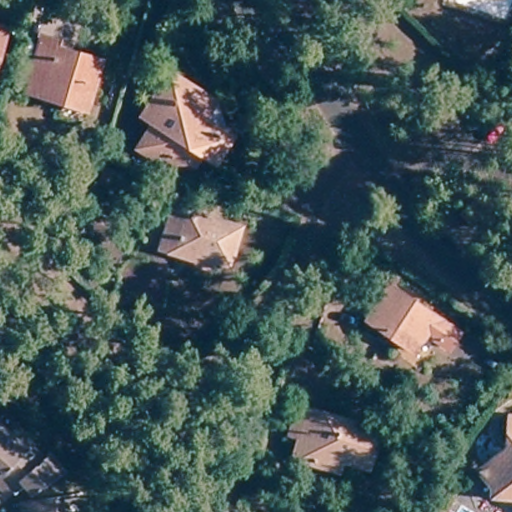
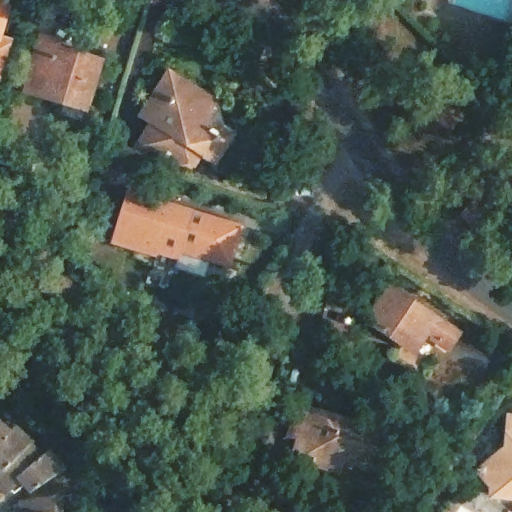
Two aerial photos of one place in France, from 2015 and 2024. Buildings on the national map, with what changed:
unchanged [(59,42),(56,49),(103,63),(88,111),(25,92),(43,37),(59,42)]
unchanged [(221,97),(206,124),(235,136),(220,174),(199,164),(176,172),(130,152),(146,129),(135,121),(169,70),(221,97)]
new [(158,258),(111,244),(127,194),(174,208),(160,252),(158,258)]
unchanged [(488,215),(474,229),(462,216),(475,202),(488,215)]
unchanged [(242,229),(230,267),(214,262),(212,268),(160,252),(174,208),(242,229)]
unchanged [(451,326),(441,341),(429,333),(416,353),(368,322),(390,286),(451,326)]
unchanged [(301,437),(310,409),(380,431),(368,470),(343,463),(339,473),(309,464),(295,459),(301,437)]
unchanged [(16,426),(36,443),(34,445),(44,456),(51,450),(66,470),(30,496),(20,485),(6,498),(0,492),(0,473),(0,422),(11,431),(16,426)]
unchanged [(486,501),(486,493),(474,477),(502,455),(505,423),(512,424),(512,507),(510,504),(486,501)]
unchanged [(67,512),(20,512),(19,505),(31,505),(31,502),(65,498),(67,512)]

